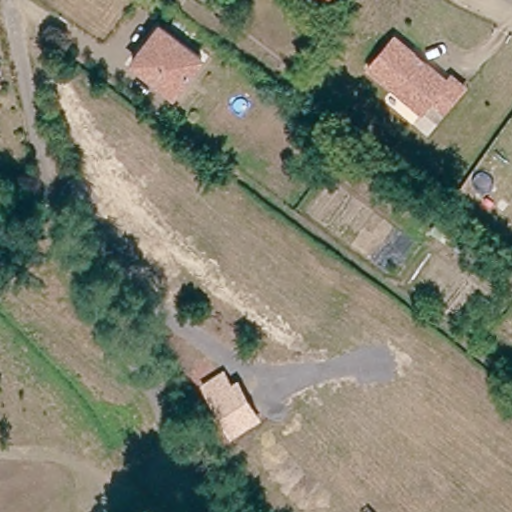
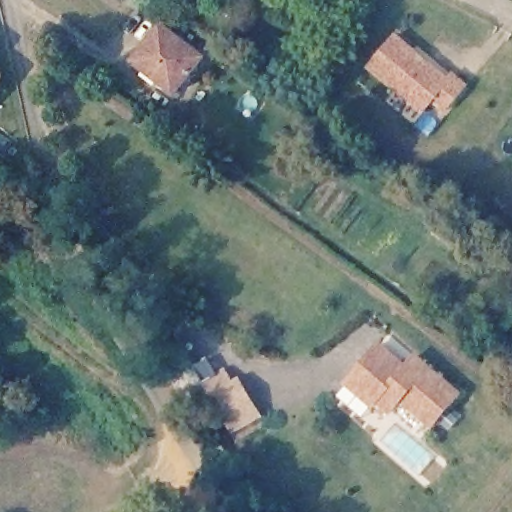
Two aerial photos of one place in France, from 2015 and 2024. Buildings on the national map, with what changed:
unchanged [(330,1),(328,0),(331,0),(330,1)]
unchanged [(158,24),(199,57),(173,90),(132,57),(158,24)]
unchanged [(448,76),(462,87),(441,111),(429,101),(419,112),(364,66),(392,35),(413,53),(422,61),(444,80),(448,76)]
new [(462,392),(431,428),(399,403),(389,415),(376,404),(371,409),(369,408),(343,383),(380,342),(405,364),(414,353),(462,392)]
new [(233,381),(239,377),(262,416),(234,433),(208,394),(202,381),(224,368),(233,381)]

